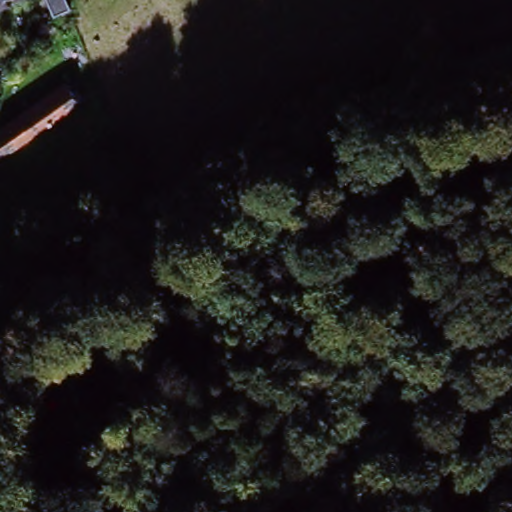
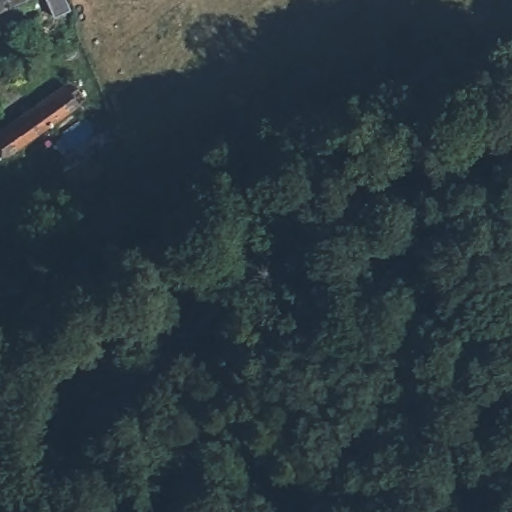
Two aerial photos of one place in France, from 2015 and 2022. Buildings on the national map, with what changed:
unchanged [(0,0),(21,0),(0,10),(0,0)]
unchanged [(43,0),(61,0),(66,10),(52,18),(43,0)]
unchanged [(85,106),(16,154),(1,134),(70,86),(85,106)]

